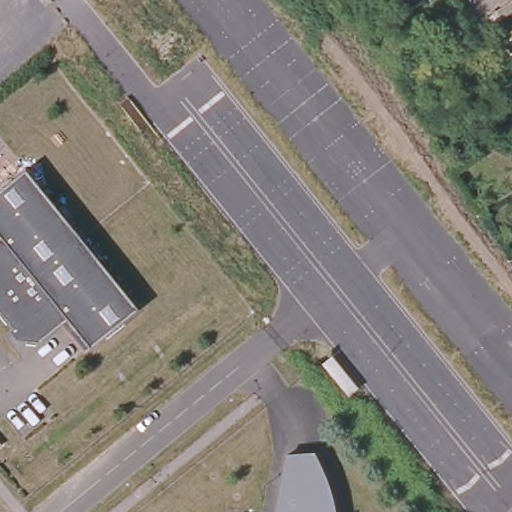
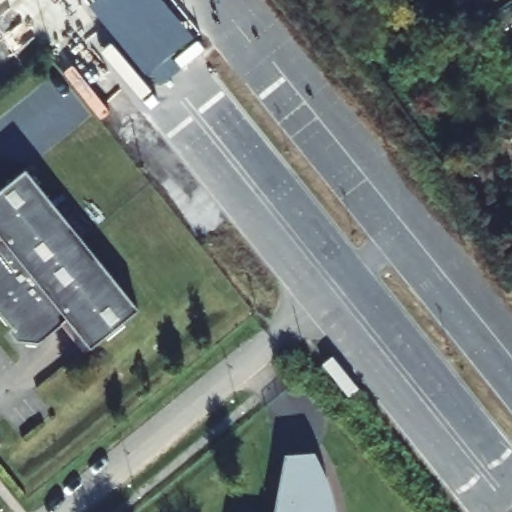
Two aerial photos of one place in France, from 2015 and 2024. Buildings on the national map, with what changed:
new [(90,5),(97,0),(163,0),(192,36),(147,74),(90,5)]
unchanged [(81,240),(82,241),(137,311),(88,350),(66,322),(37,345),(22,343),(0,316),(0,190),(26,170),(81,240)]
unchanged [(317,458),(325,499),(325,512),(282,512),(292,460),(317,458)]

